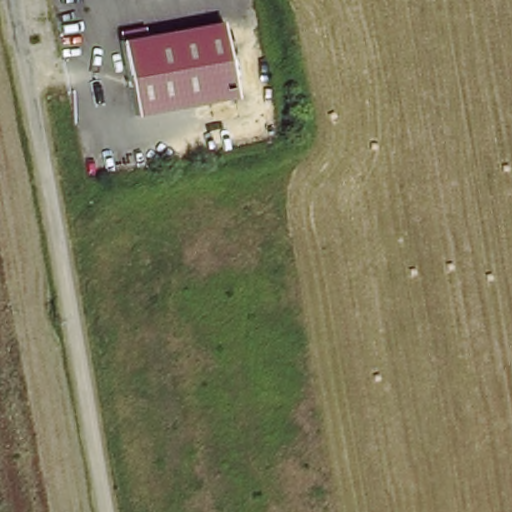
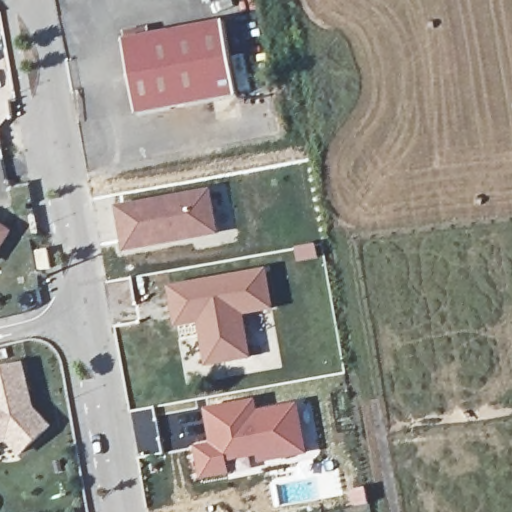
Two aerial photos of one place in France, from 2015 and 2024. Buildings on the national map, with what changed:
unchanged [(235,100),(135,117),(122,42),(222,25),(235,100)]
new [(211,188),(219,235),(122,253),(114,206),(211,188)]
new [(11,235),(0,253),(0,228),(11,235)]
new [(37,257),(47,255),(50,273),(40,274),(37,257)]
new [(267,275),(287,372),(228,383),(224,362),(210,366),(202,322),(179,329),(173,292),(267,275)]
new [(0,446),(0,375),(21,370),(32,414),(48,432),(21,457),(8,444),(0,446)]
new [(200,451),(215,448),(212,416),(254,408),(257,419),(297,409),(307,455),(263,465),(261,456),(227,463),(228,474),(204,479),(200,451)]

